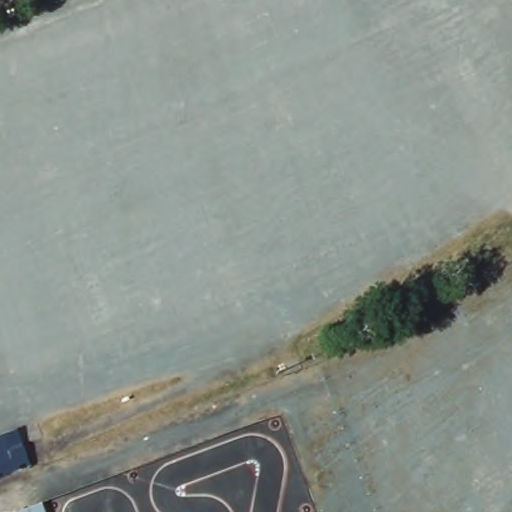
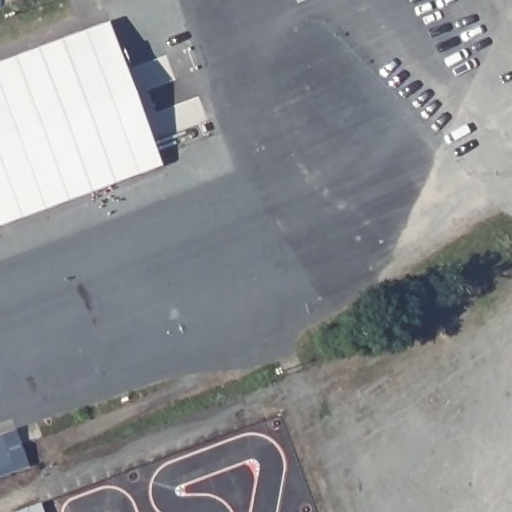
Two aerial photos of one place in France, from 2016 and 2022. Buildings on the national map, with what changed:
new [(113,21),(166,165),(0,226),(0,63),(113,21)]
unchanged [(14,429),(26,465),(0,474),(0,434),(14,429)]
unchanged [(45,512),(17,512),(42,503),(45,512)]

